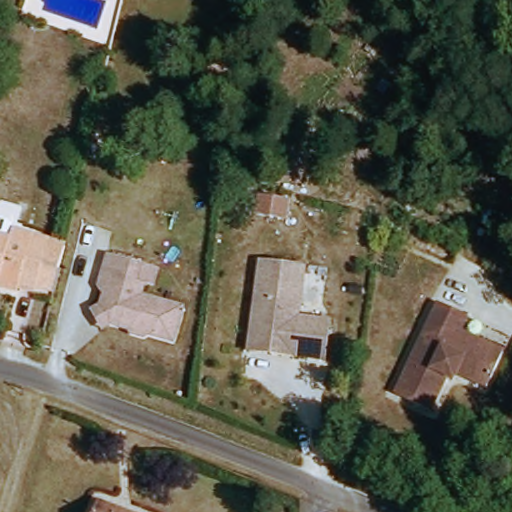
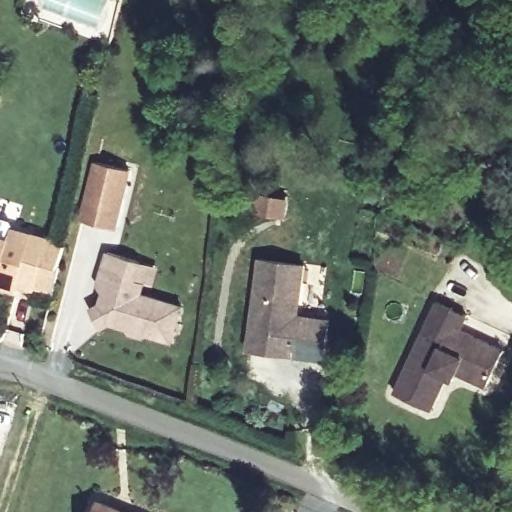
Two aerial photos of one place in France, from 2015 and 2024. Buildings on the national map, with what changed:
unchanged [(50,0),(81,0),(105,9),(97,33),(45,14),(50,0)]
new [(80,219),(96,162),(132,171),(118,228),(80,219)]
unchanged [(69,247),(62,274),(44,269),(37,293),(21,289),(19,293),(0,288),(0,226),(17,231),(69,247)]
unchanged [(93,311),(104,305),(113,273),(103,272),(110,251),(144,260),(139,279),(147,281),(144,295),(186,307),(176,340),(150,332),(148,339),(136,337),(131,327),(114,322),(104,329),(93,311)]
unchanged [(257,336),(266,261),(310,266),(305,316),(337,320),(332,359),(297,356),(255,351),(257,336)]
unchanged [(437,407),(401,391),(443,300),(473,313),(467,327),(510,347),(493,383),(463,370),(460,377),(453,373),(437,407)]
unchanged [(121,512),(95,512),(99,502),(121,512)]

